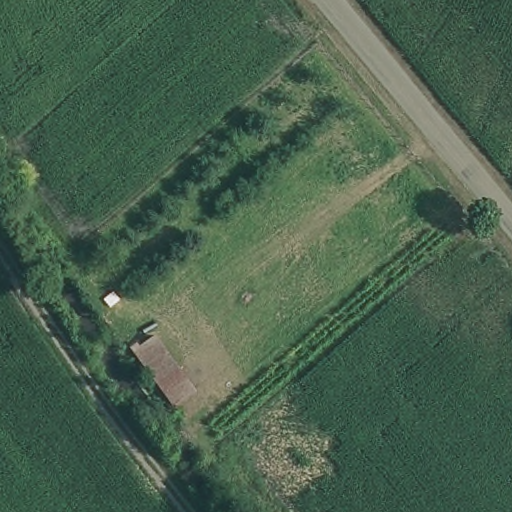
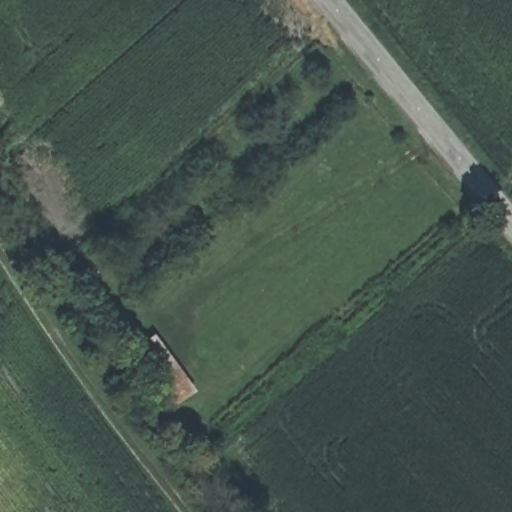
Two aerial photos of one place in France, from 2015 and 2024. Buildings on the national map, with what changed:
unchanged [(173,411),(131,350),(155,333),(198,390),(173,411)]

